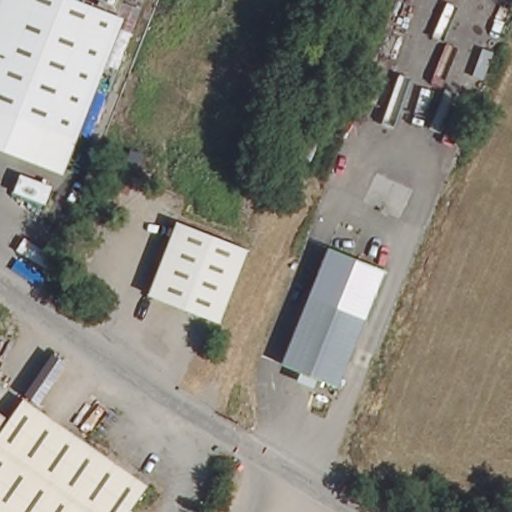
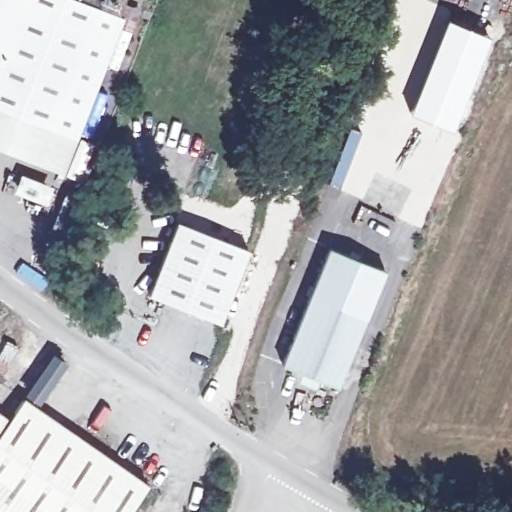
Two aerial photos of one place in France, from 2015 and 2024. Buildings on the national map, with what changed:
unchanged [(73,1),(74,0),(145,0),(121,69),(108,64),(97,94),(107,98),(93,135),(82,130),(65,175),(0,150),(0,0),(71,0),(73,1)]
new [(445,17),(490,35),(450,129),(407,111),(445,17)]
unchanged [(276,158),(293,115),(317,125),(300,168),(276,158)]
new [(348,126),(362,132),(340,186),(325,180),(348,126)]
unchanged [(148,291),(178,219),(247,249),(217,320),(148,291)]
unchanged [(273,358),(323,239),(379,263),(330,382),(273,358)]
unchanged [(13,420),(27,398),(150,487),(134,512),(8,512),(0,506),(0,410),(13,420)]

